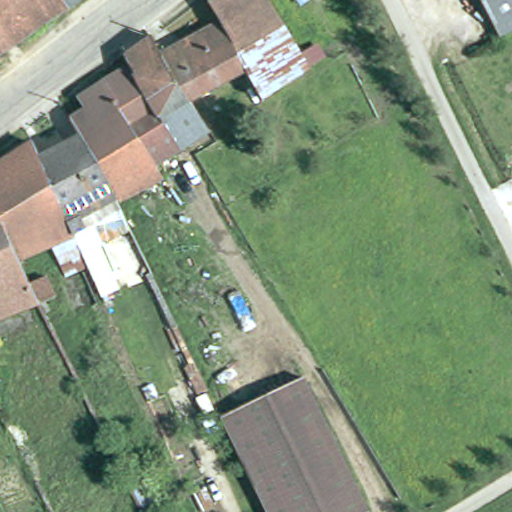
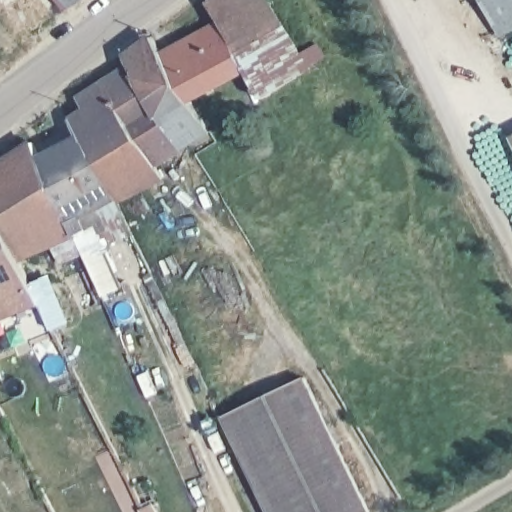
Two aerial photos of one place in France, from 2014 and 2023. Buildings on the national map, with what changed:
demolished [(0,61),(0,0),(85,0),(0,61)]
unchanged [(248,69),(223,23),(211,1),(212,0),(268,0),(310,70),(263,99),(248,69)]
unchanged [(512,35),(505,39),(485,0),(512,0),(512,35)]
unchanged [(192,99),(180,80),(165,55),(223,23),(248,69),(192,99)]
unchanged [(165,55),(180,80),(168,87),(153,97),(128,55),(153,37),(165,55)]
unchanged [(87,109),(80,97),(103,83),(120,72),(146,116),(160,108),(153,97),(168,87),(180,80),(192,99),(203,118),(212,132),(158,165),(164,177),(119,201),(117,198),(111,184),(102,170),(83,138),(71,119),(87,109)]
new [(512,136),(512,138),(511,137),(512,136)]
unchanged [(33,282),(48,276),(57,296),(0,320),(0,165),(23,150),(36,142),(41,152),(44,157),(83,138),(102,170),(111,184),(117,198),(82,217),(88,229),(77,234),(91,262),(63,276),(50,246),(21,258),(33,282)]
unchanged [(2,379),(0,380),(0,374),(2,379)]
unchanged [(305,377),(370,512),(269,512),(223,417),(305,377)]
unchanged [(3,407),(0,409),(0,401),(3,407)]
unchanged [(155,506),(158,512),(145,512),(143,508),(158,502),(160,504),(155,506)]

